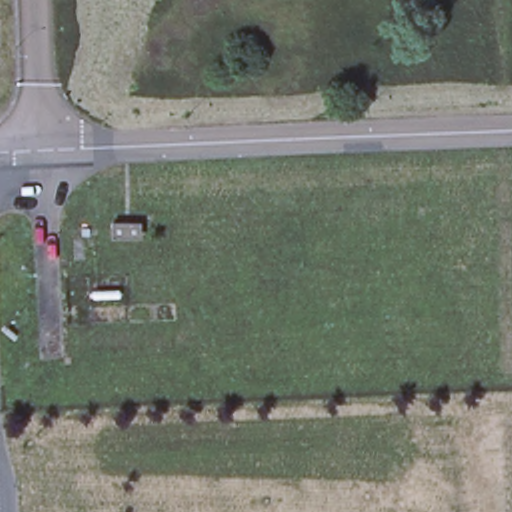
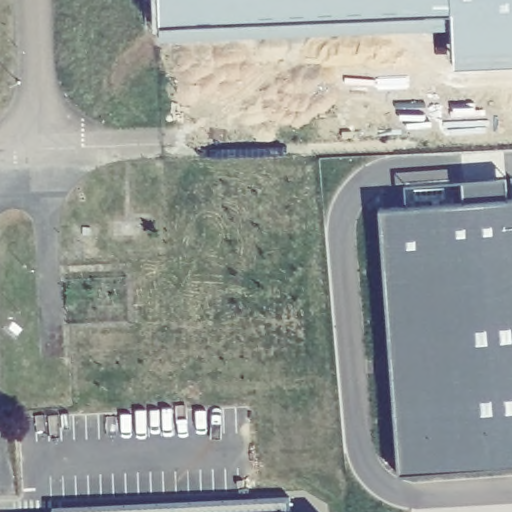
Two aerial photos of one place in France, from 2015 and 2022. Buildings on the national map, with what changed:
new [(454,72),(452,33),(157,45),(154,0),(512,0),(512,70),(454,72)]
new [(469,201),(467,179),(511,176),(512,191),(512,198),(469,201)]
new [(379,207),(512,198),(512,466),(398,474),(379,207)]
new [(291,512),(52,512),(52,508),(290,497),(291,512)]

